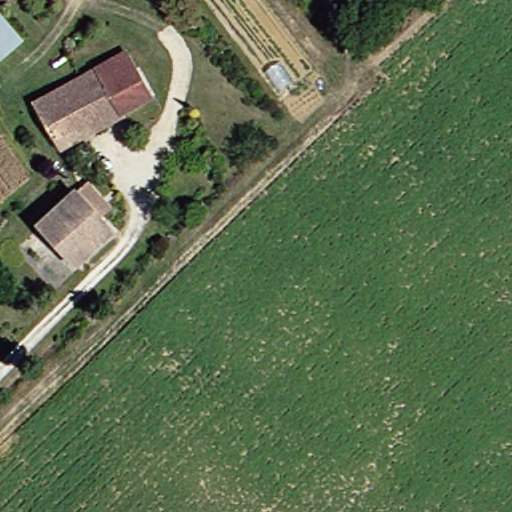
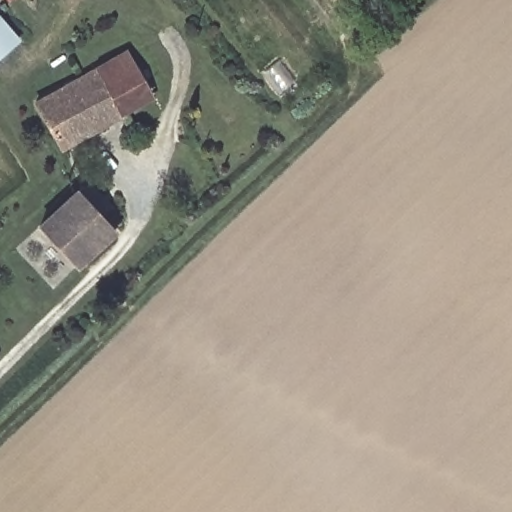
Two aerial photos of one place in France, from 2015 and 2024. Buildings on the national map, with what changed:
unchanged [(0,0),(4,0),(0,4),(0,0)]
unchanged [(250,0),(324,94),(286,124),(193,0),(250,0)]
unchanged [(0,60),(0,32),(15,49),(0,60)]
unchanged [(149,100),(107,124),(109,130),(47,158),(22,110),(126,55),(149,100)]
unchanged [(69,200),(80,189),(102,218),(92,228),(106,241),(67,272),(32,231),(69,200)]

